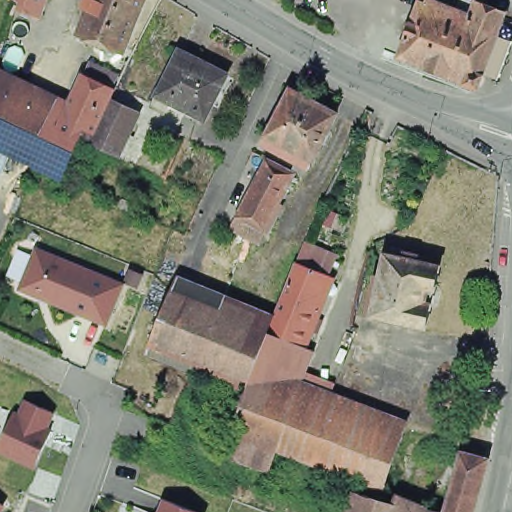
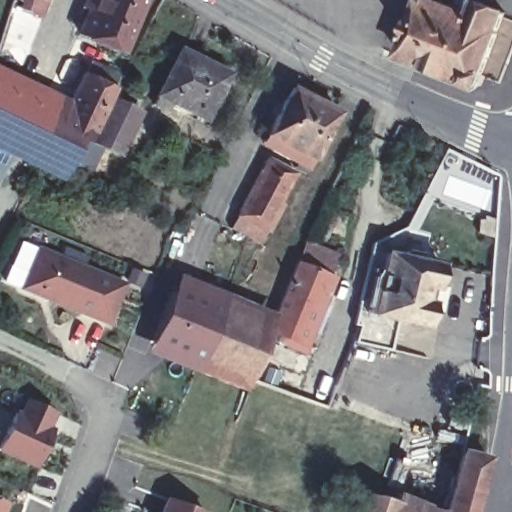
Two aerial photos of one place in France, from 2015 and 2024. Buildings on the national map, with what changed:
unchanged [(40,11),(12,0),(13,0),(44,0),(40,11)]
unchanged [(84,34),(98,0),(149,0),(127,53),(84,34)]
unchanged [(459,0),(476,0),(504,10),(495,31),(497,31),(480,73),(466,80),(406,56),(402,48),(420,1),(425,3),(426,0),(435,0),(455,8),(459,0)]
unchanged [(151,97),(157,87),(155,86),(178,44),(225,67),(203,111),(170,94),(165,104),(151,97)]
unchanged [(103,109),(92,131),(84,127),(85,125),(62,113),(82,71),(107,84),(110,79),(115,82),(114,86),(113,87),(107,99),(103,109)]
unchanged [(39,159),(0,140),(0,84),(62,113),(85,125),(84,127),(81,133),(55,124),(39,159)]
unchanged [(298,134),(288,153),(275,146),(267,137),(294,86),(317,98),(298,134)]
unchanged [(298,134),(317,98),(340,110),(311,166),(288,153),(298,134)]
unchanged [(103,109),(107,99),(136,112),(119,150),(90,136),(91,135),(92,131),(103,109)]
unchanged [(81,133),(63,171),(39,159),(55,124),(81,133)]
unchanged [(262,241),(259,239),(250,234),(234,225),(241,212),(243,208),(247,199),(263,170),(270,154),(297,169),(300,170),(301,171),(300,171),(293,186),(290,185),(275,214),(271,224),(262,241)]
unchanged [(272,323),(295,265),(300,254),(309,235),(340,248),(332,267),(304,334),(272,323)]
new [(20,239),(37,245),(19,288),(2,281),(20,239)]
unchanged [(127,282),(110,324),(22,289),(39,248),(127,282)]
unchanged [(379,276),(384,277),(389,255),(407,260),(409,254),(422,257),(420,263),(444,268),(438,291),(432,290),(429,304),(435,305),(430,328),(383,318),(370,315),(379,276)]
unchanged [(210,339),(204,353),(155,333),(170,298),(175,283),(225,304),(210,339)]
unchanged [(272,323),(252,370),(252,372),(204,353),(210,339),(225,304),(272,323)]
unchanged [(315,342),(298,387),(254,370),(272,323),(304,334),(315,342)]
demolished [(230,438),(235,422),(234,421),(254,370),(298,387),(330,399),(405,427),(386,478),(281,439),(275,455),(230,438)]
unchanged [(56,410),(49,427),(54,427),(35,467),(0,452),(0,447),(16,412),(23,415),(29,399),(56,410)]
unchanged [(424,512),(427,501),(445,506),(461,444),(485,450),(485,451),(469,512),(424,512)]
unchanged [(393,496),(397,486),(427,499),(427,501),(424,512),(345,512),(355,484),(393,496)]
unchanged [(159,512),(165,496),(207,512),(159,512)]
unchanged [(4,512),(0,512),(0,499),(9,502),(4,512)]

